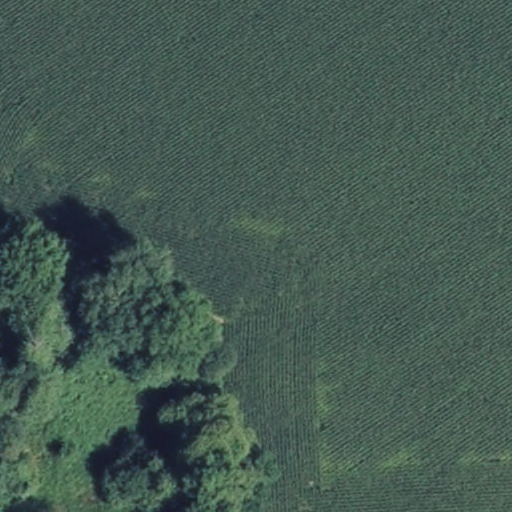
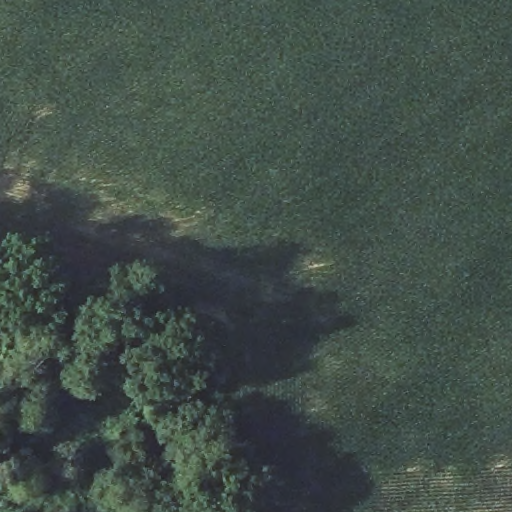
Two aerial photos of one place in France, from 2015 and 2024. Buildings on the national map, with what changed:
[]

